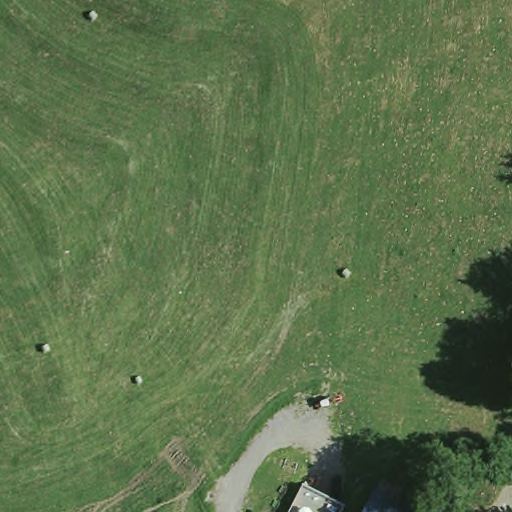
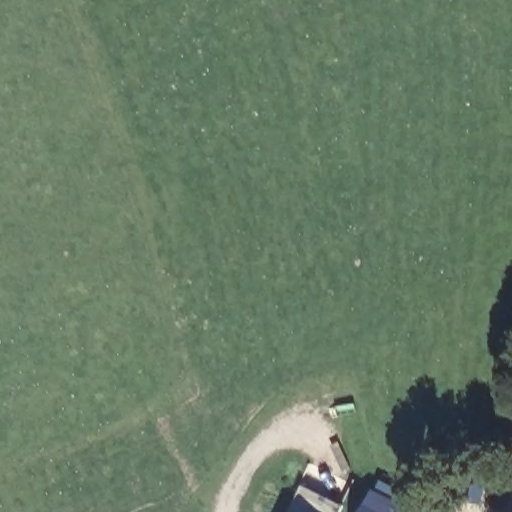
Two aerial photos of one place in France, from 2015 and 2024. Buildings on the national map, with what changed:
unchanged [(378,489),(397,499),(399,494),(404,497),(403,502),(420,512),(366,512),(378,489)]

